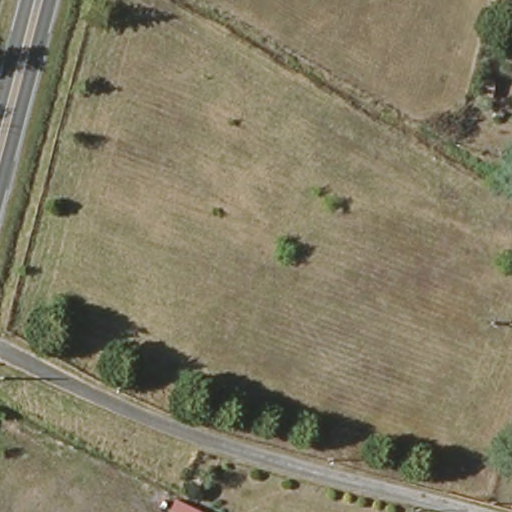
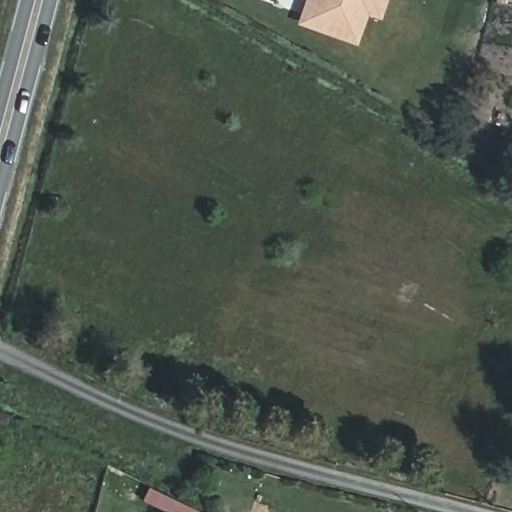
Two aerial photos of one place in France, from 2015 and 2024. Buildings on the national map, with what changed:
new [(368,14),(356,45),(297,23),(306,0),(386,0),(379,19),(368,14)]
unchanged [(491,99),(479,97),(483,79),(494,81),(491,99)]

